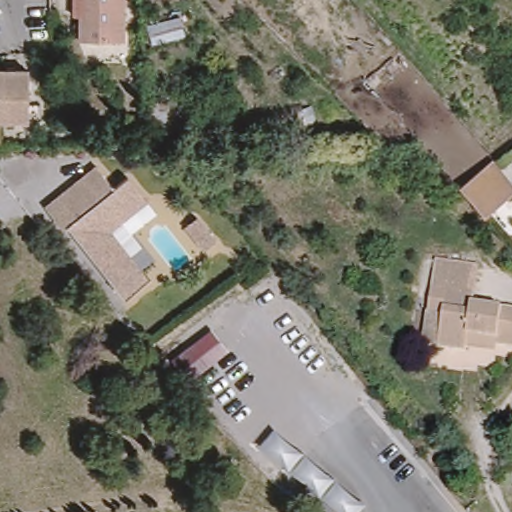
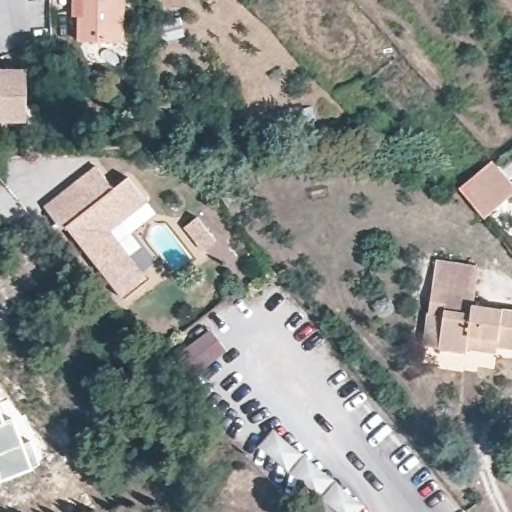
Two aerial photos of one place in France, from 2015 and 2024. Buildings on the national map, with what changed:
unchanged [(86,40),(86,16),(79,15),(79,4),(79,0),(126,0),(126,40),(86,40)]
unchanged [(32,71),(31,120),(0,120),(0,70),(32,71)]
demolished [(141,147),(123,146),(123,133),(141,134),(141,147)]
unchanged [(512,173),(512,193),(488,213),(463,183),(498,155),(512,173)]
unchanged [(105,189),(119,177),(139,200),(101,231),(135,272),(142,281),(119,299),(59,226),(56,229),(38,208),(50,199),(88,167),(105,189)]
unchanged [(199,220),(219,244),(207,253),(188,230),(199,220)]
unchanged [(443,256),(483,261),(481,291),(440,286),(443,256)]
unchanged [(472,349),(445,346),(450,311),(437,308),(440,286),(481,291),(479,300),(512,305),(512,344),(502,343),(502,347),(473,343),(472,349)]
unchanged [(170,361),(209,332),(222,355),(185,382),(170,361)]
new [(6,421),(14,417),(34,466),(1,479),(0,477),(0,406),(6,421)]

